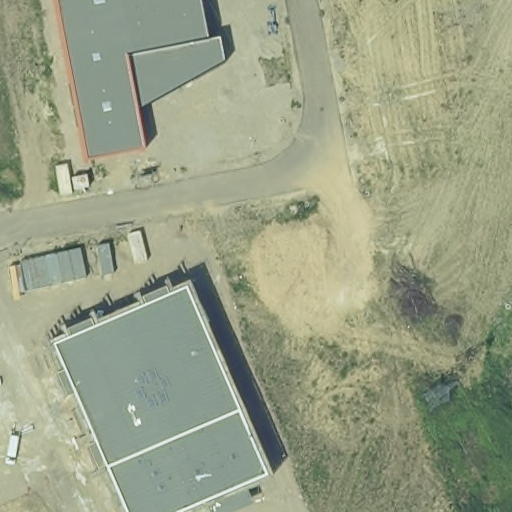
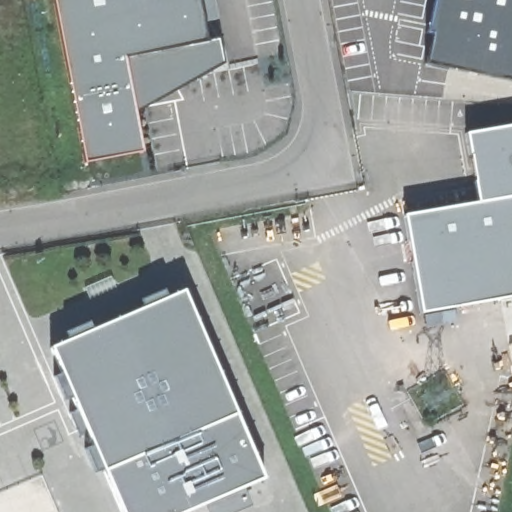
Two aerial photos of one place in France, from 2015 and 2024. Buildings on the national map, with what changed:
unchanged [(220,38),(225,64),(137,114),(144,153),(85,164),(53,0),(200,0),(207,40),(220,38)]
new [(426,35),(433,0),(512,0),(512,82),(425,65),(431,36),(426,35)]
new [(475,206),(467,149),(466,134),(512,127),(512,300),(421,314),(404,216),(475,206)]
new [(111,277),(116,288),(90,299),(85,289),(111,277)]
unchanged [(67,341),(65,333),(89,323),(92,330),(142,309),(139,301),(163,291),(167,298),(184,291),(264,479),(245,488),(252,506),(237,512),(207,512),(204,505),(188,512),(121,512),(104,471),(96,473),(85,449),(92,445),(87,434),(80,437),(70,414),(77,410),(72,399),(65,401),(54,377),(62,373),(51,348),(67,341)]

